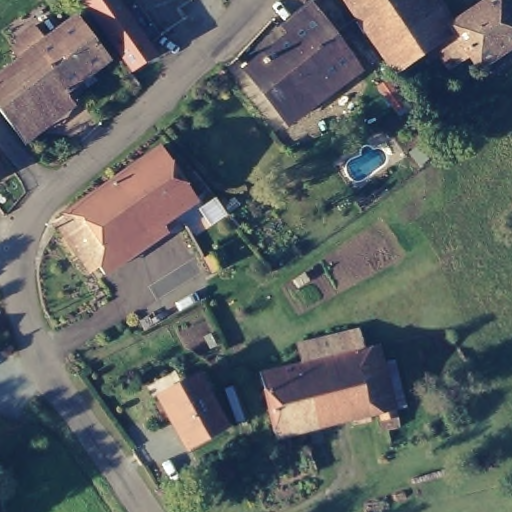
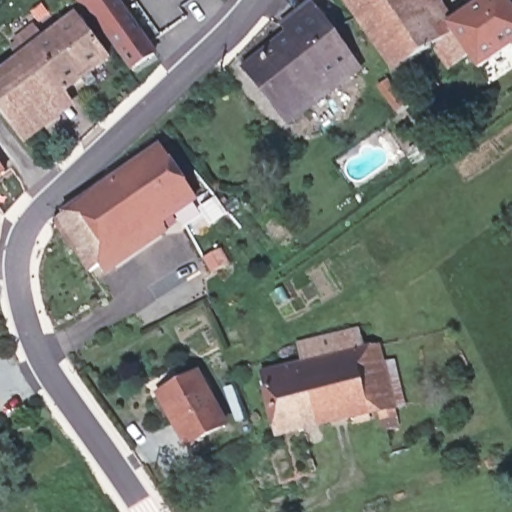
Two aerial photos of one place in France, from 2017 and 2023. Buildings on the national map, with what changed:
unchanged [(74,0),(68,5),(65,0),(74,0)]
unchanged [(138,71),(94,11),(78,0),(120,0),(160,55),(138,71)]
unchanged [(279,23),(305,0),(306,0),(355,65),(282,119),(243,69),(287,33),(279,23)]
unchanged [(453,39),(450,34),(499,0),(501,0),(512,16),(512,52),(478,75),(470,64),(449,77),(432,53),(395,77),(342,0),(416,0),(446,42),(453,39)]
unchanged [(25,62),(16,51),(24,46),(21,40),(37,29),(49,42),(79,20),(113,63),(20,135),(0,109),(0,81),(25,62)]
unchanged [(159,146),(195,199),(171,216),(174,222),(166,228),(162,221),(91,271),(59,225),(56,220),(77,203),(159,146)]
unchanged [(302,365),(298,346),(357,330),(363,349),(376,346),(391,409),(276,437),(261,375),(302,365)]
unchanged [(195,373),(223,422),(185,442),(158,392),(195,373)]

